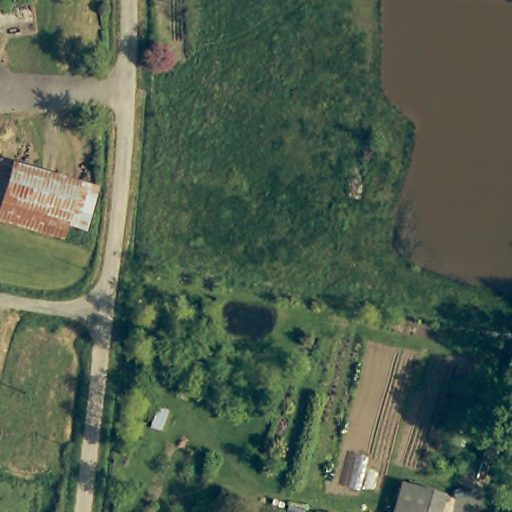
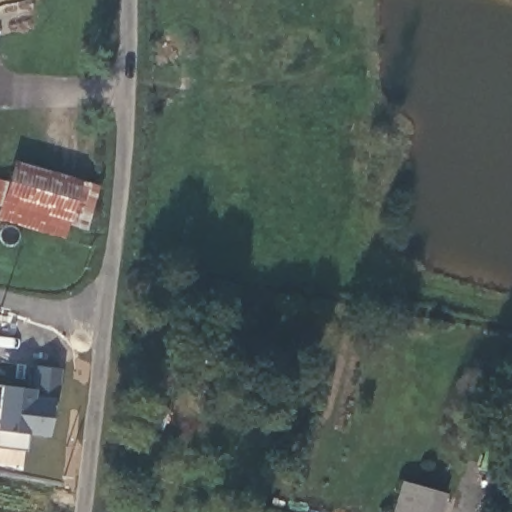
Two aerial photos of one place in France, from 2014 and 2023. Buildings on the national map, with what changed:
unchanged [(12,164),(96,188),(86,227),(66,220),(61,235),(0,218),(0,210),(12,164)]
new [(58,399),(50,398),(46,438),(27,436),(26,452),(0,449),(0,385),(34,388),(35,368),(63,369),(58,399)]
unchanged [(441,512),(396,512),(404,484),(446,497),(441,512)]

